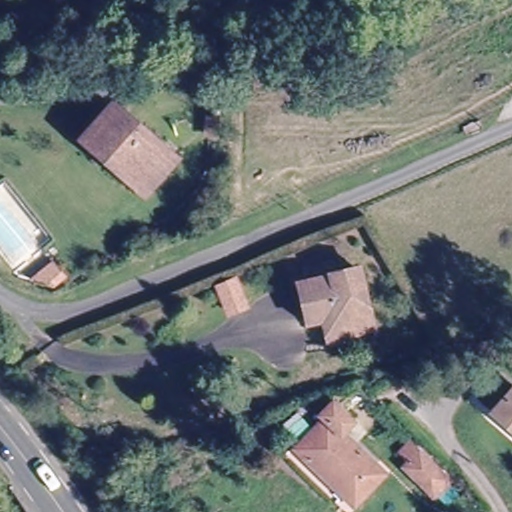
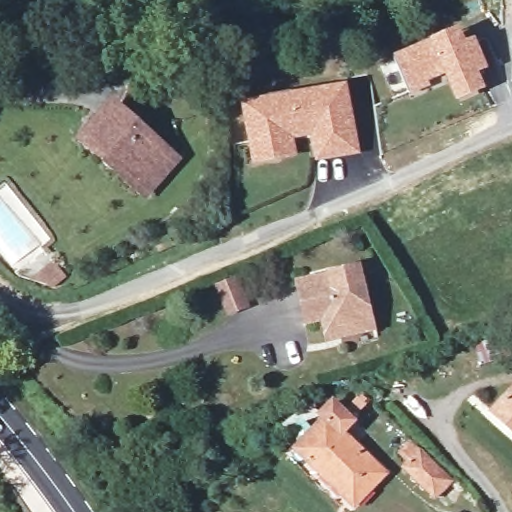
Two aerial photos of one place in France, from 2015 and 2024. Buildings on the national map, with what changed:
new [(432,40),(462,28),(468,42),(477,40),(488,68),(480,71),(488,90),(458,102),(446,72),(430,80),(433,86),(410,95),(395,57),(432,40)]
new [(316,162),(312,136),(295,139),(297,156),(254,165),(241,105),(349,85),(361,152),(316,162)]
unchanged [(164,169),(142,191),(134,183),(86,136),(108,114),(118,105),(159,145),(173,159),(164,169)]
unchanged [(220,271),(237,266),(245,291),(228,296),(220,271)]
unchanged [(324,317),(307,320),(301,281),(362,270),(375,330),(347,336),(326,339),(324,317)]
unchanged [(512,393),(512,435),(490,415),(512,393)]
unchanged [(288,448),(317,419),(312,415),(327,400),(348,421),(338,432),(379,471),(347,505),(288,448)]
unchanged [(448,479),(434,494),(405,464),(409,460),(402,453),(412,443),(448,479)]

